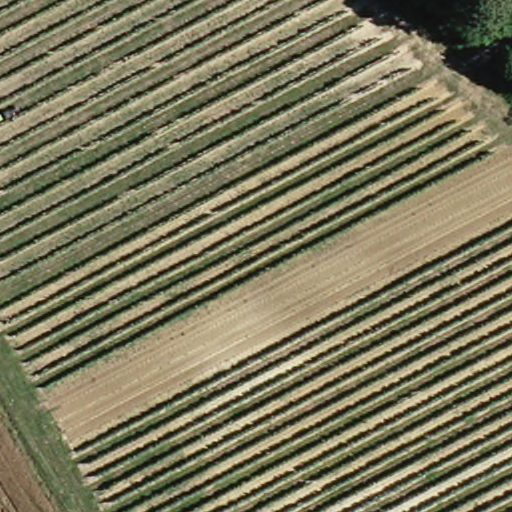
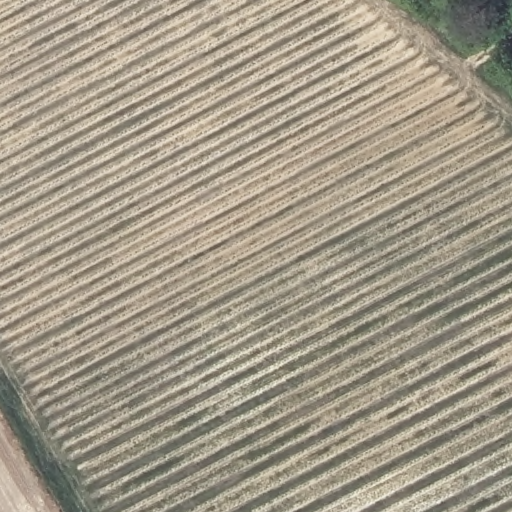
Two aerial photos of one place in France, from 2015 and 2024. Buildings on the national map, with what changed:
[]

